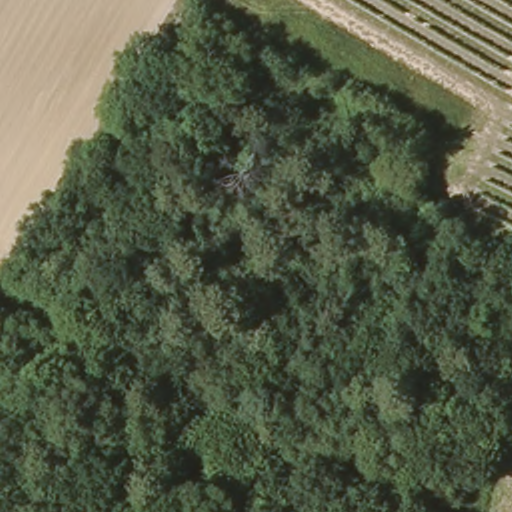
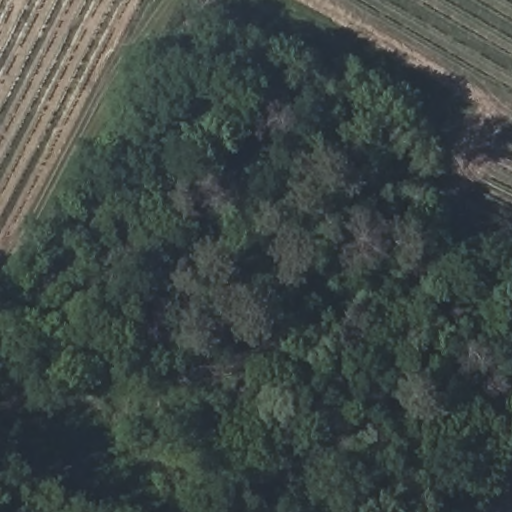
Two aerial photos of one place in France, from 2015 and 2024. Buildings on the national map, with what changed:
[]

